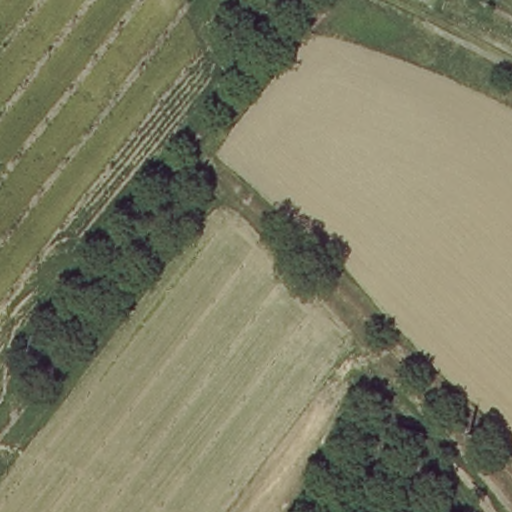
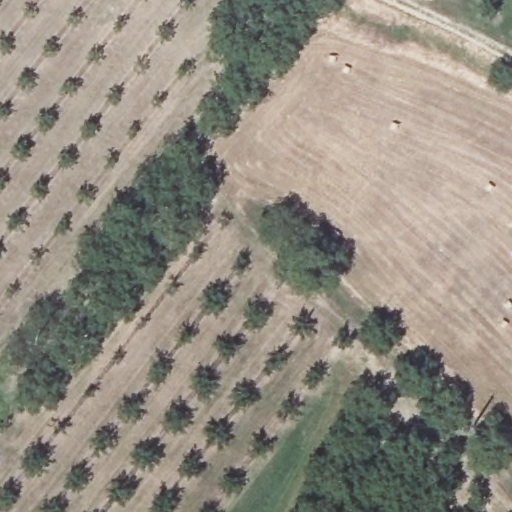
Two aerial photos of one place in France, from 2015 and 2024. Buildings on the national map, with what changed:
[]

